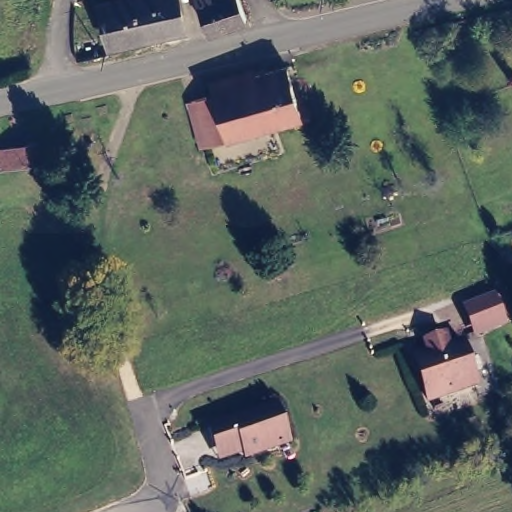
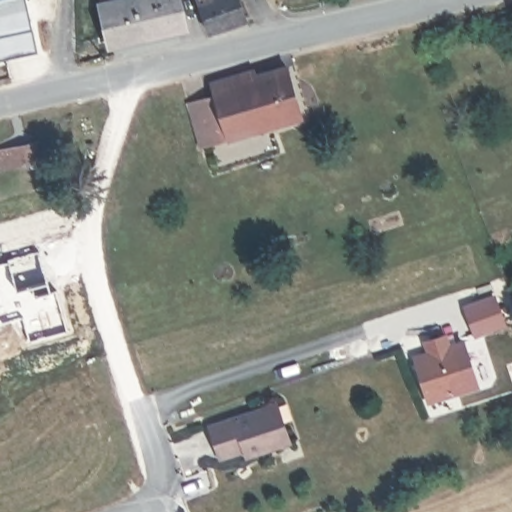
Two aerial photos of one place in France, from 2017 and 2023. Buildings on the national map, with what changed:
new [(38,48),(0,58),(0,0),(26,0),(38,48)]
demolished [(3,0),(52,0),(54,7),(13,22),(3,0)]
unchanged [(187,32),(117,51),(103,1),(109,0),(138,0),(139,4),(153,0),(178,0),(187,32)]
unchanged [(248,17),(210,28),(201,0),(243,0),(248,17)]
unchanged [(304,122),(290,126),(208,151),(207,151),(194,108),(220,100),(217,93),(288,71),(304,122)]
unchanged [(90,112),(100,144),(71,153),(60,121),(90,112)]
unchanged [(42,170),(0,179),(0,151),(37,143),(42,170)]
new [(7,261),(39,252),(48,284),(32,289),(35,298),(56,292),(68,333),(29,344),(22,320),(0,326),(0,266),(8,264),(7,261)]
new [(475,338),(462,307),(495,294),(507,326),(475,338)]
demolished [(505,308),(493,311),(490,300),(502,297),(505,308)]
unchanged [(480,384),(432,401),(417,356),(432,351),(430,342),(447,335),(451,345),(465,339),(480,384)]
unchanged [(213,443),(207,428),(268,407),(277,404),(290,441),(282,444),(247,457),(243,448),(218,456),(213,443)]

